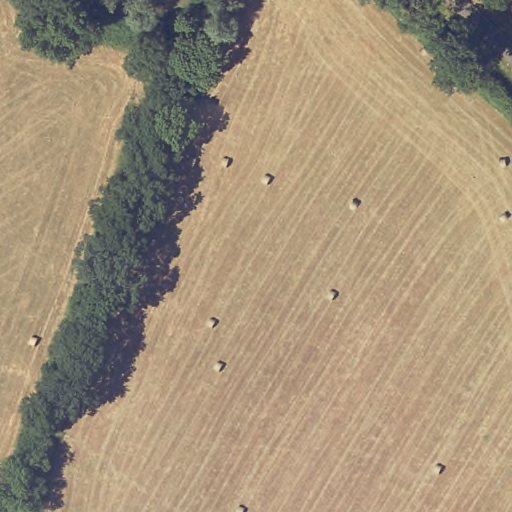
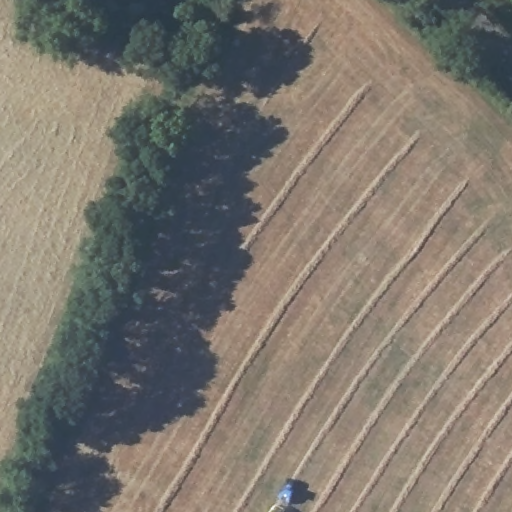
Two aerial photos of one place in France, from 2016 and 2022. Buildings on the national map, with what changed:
[]

